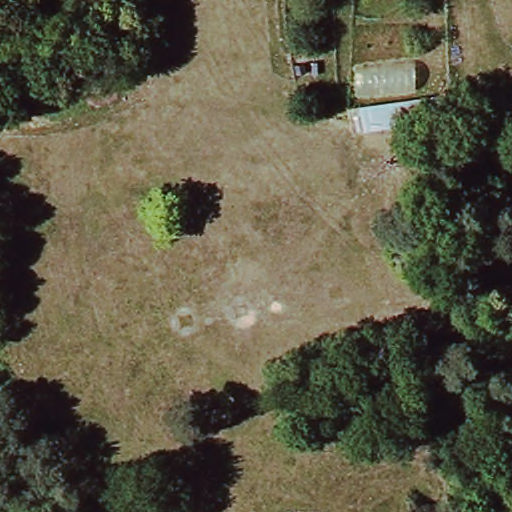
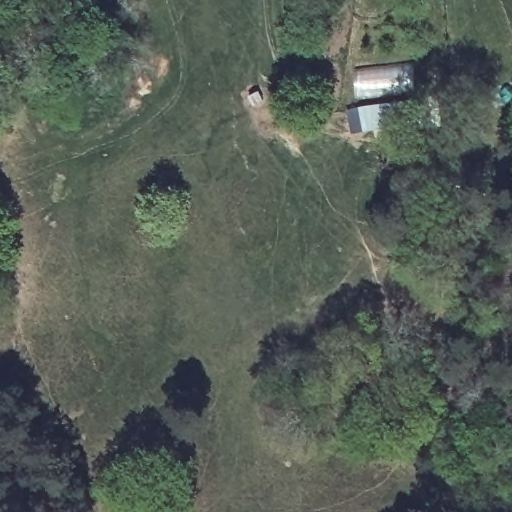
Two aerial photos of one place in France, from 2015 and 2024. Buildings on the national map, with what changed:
unchanged [(415,64),(415,92),(358,97),(357,69),(415,64)]
unchanged [(435,97),(436,122),(367,135),(360,109),(435,97)]

